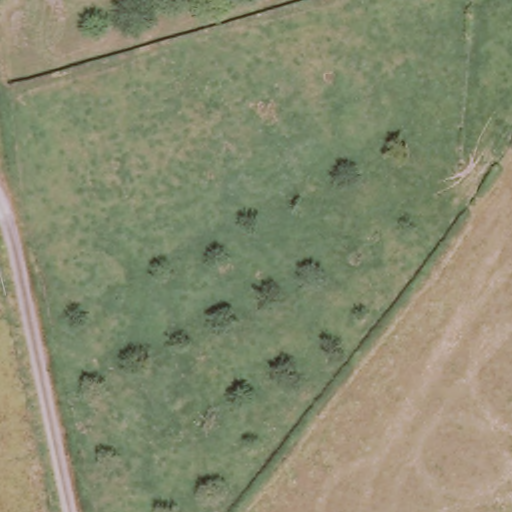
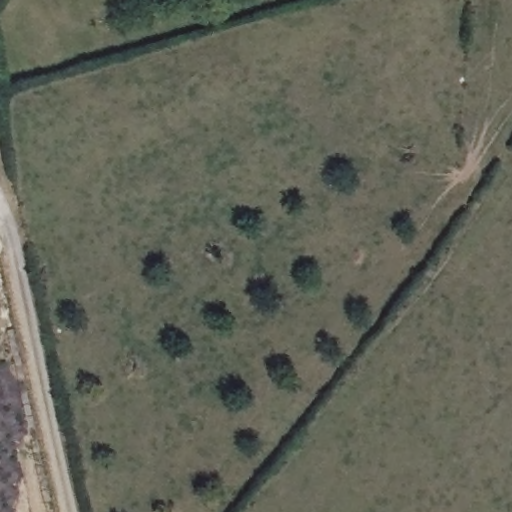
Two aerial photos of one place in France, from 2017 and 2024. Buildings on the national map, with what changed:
[]

